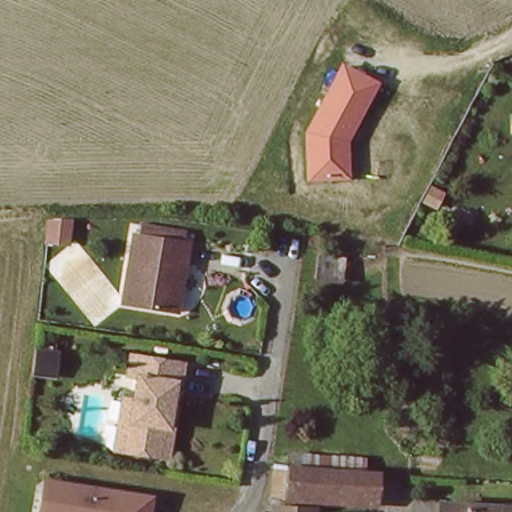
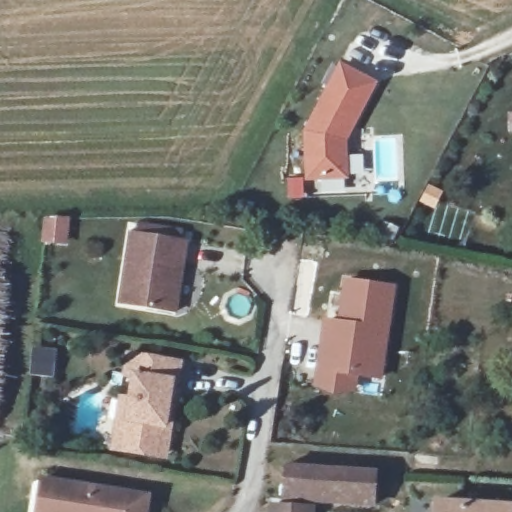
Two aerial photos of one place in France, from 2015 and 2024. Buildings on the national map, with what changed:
unchanged [(348,139),(350,180),(305,180),(302,133),(340,62),(378,80),(348,139)]
unchanged [(73,247),(45,244),(45,216),(75,217),(73,247)]
unchanged [(125,227),(190,235),(189,256),(180,254),(172,310),(115,302),(125,227)]
new [(336,320),(344,278),(397,285),(383,381),(358,377),(356,393),(314,386),(324,318),(336,320)]
unchanged [(175,458),(165,457),(135,453),(118,450),(127,399),(142,403),(144,385),(130,382),(133,356),(187,362),(185,390),(174,388),(171,406),(185,407),(175,458)]
unchanged [(275,492),(279,472),(372,482),(370,505),(304,499),(275,496),(275,492)]
unchanged [(35,512),(40,476),(153,494),(150,512),(35,512)]
unchanged [(303,512),(275,512),(275,496),(304,499),(303,512)]
unchanged [(512,504),(512,512),(433,512),(433,499),(512,504)]

